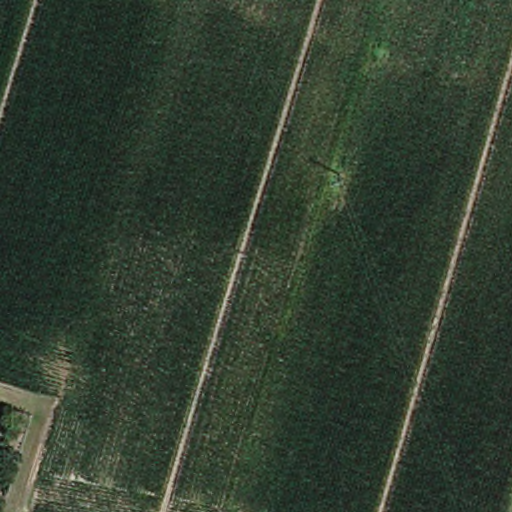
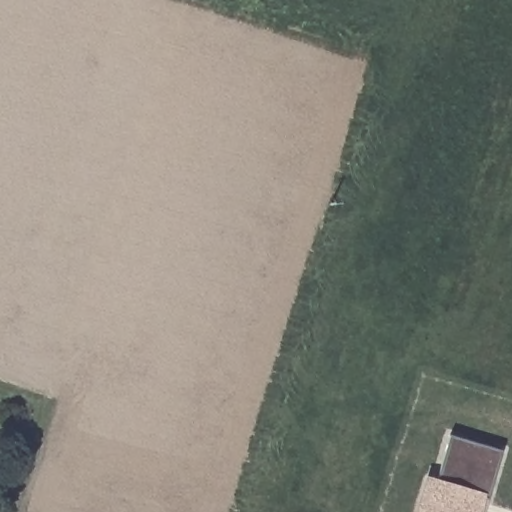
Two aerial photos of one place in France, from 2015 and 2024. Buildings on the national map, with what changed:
new [(490,495),(483,493),(478,512),(420,512),(431,476),(438,478),(452,431),(504,446),(490,495)]
new [(478,512),(483,493),(490,495),(486,512),(478,512)]

